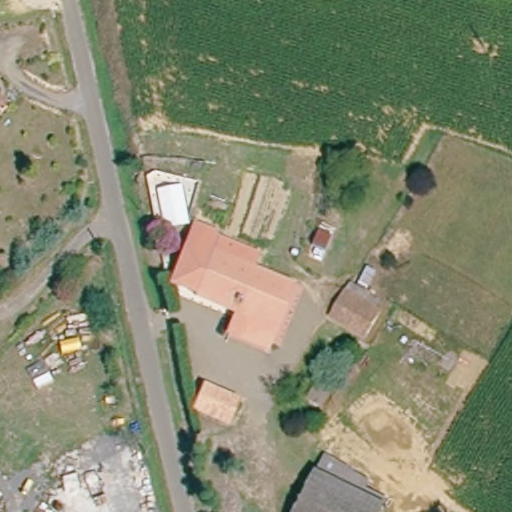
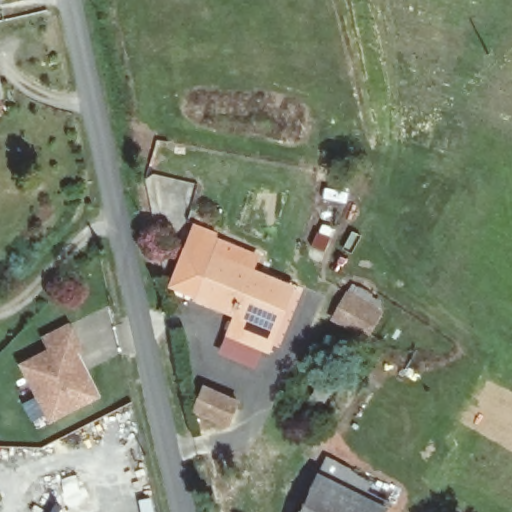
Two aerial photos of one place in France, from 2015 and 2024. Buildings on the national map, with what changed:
unchanged [(187,232),(203,237),(203,242),(232,249),(229,263),(208,257),(195,302),(178,295),(170,292),(174,279),(187,232)]
unchanged [(267,350),(230,336),(237,317),(195,302),(208,257),(229,263),(250,271),(252,263),(294,280),(267,350)]
unchanged [(375,311),(365,325),(337,308),(345,295),(375,311)]
new [(80,345),(67,352),(76,371),(83,367),(95,392),(50,415),(22,361),(50,346),(44,333),(68,321),(80,345)]
new [(83,367),(76,371),(67,352),(73,347),(83,367)]
unchanged [(200,387),(236,400),(227,425),(192,413),(200,387)]
unchanged [(384,508),(383,512),(301,512),(322,457),(346,467),(368,476),(365,485),(361,497),(384,508)]

